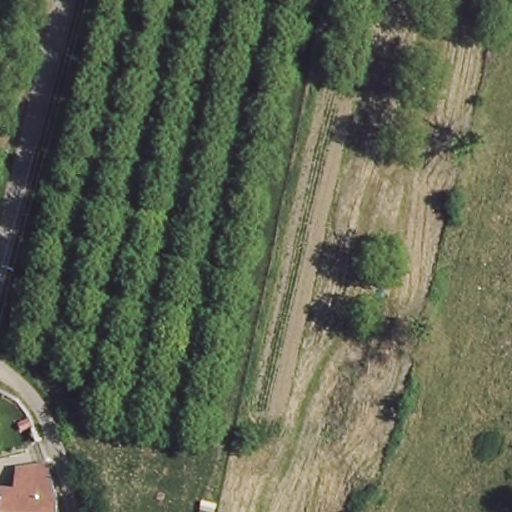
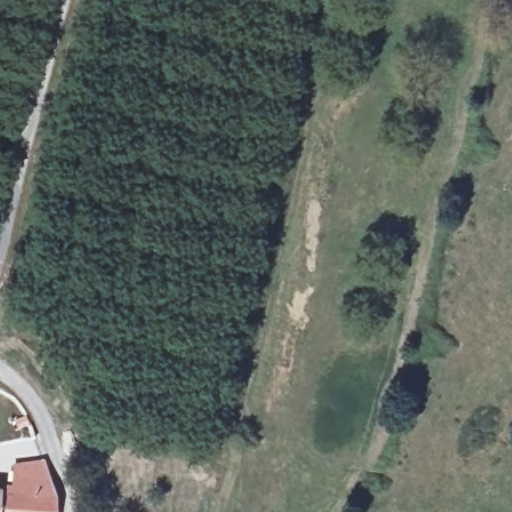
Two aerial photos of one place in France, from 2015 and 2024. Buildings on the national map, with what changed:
unchanged [(56,512),(0,512),(0,491),(19,491),(20,462),(48,463),(56,492),(56,512)]

